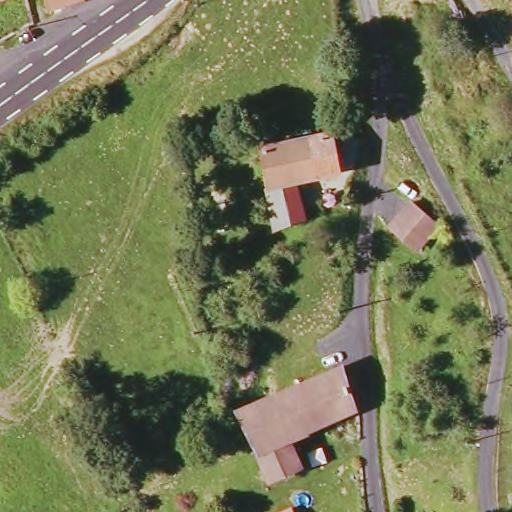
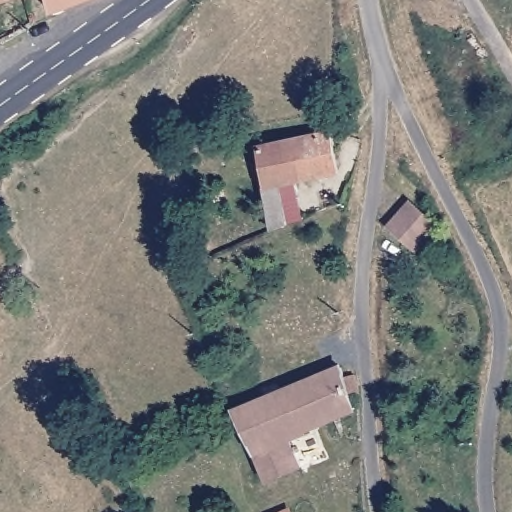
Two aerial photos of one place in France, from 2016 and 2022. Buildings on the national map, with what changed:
unchanged [(50,0),(71,0),(51,7),(50,0)]
unchanged [(331,127),(338,168),(299,177),(266,185),(259,143),(331,127)]
unchanged [(273,226),(266,185),(299,177),(304,212),(273,226)]
unchanged [(442,225),(419,249),(394,223),(415,200),(442,225)]
unchanged [(344,390),(349,406),(284,433),(293,461),(259,476),(231,408),(336,364),(338,372),(349,370),(353,387),(344,390)]

